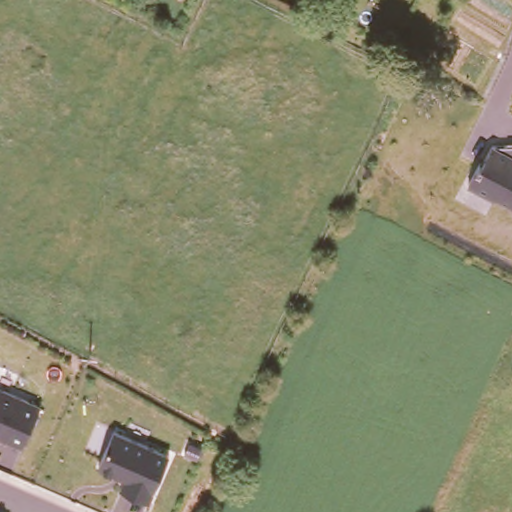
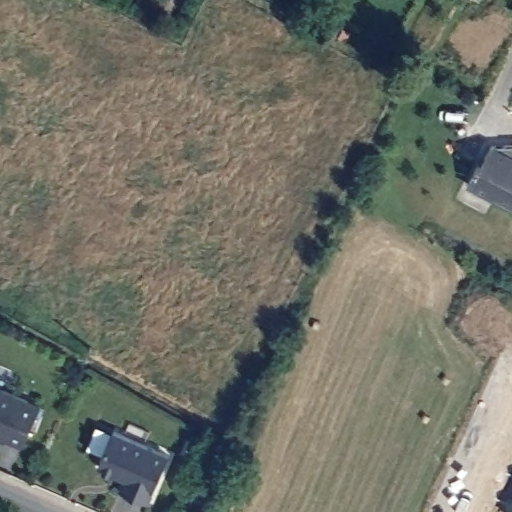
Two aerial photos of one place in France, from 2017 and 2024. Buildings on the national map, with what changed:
unchanged [(491,140),(512,139),(512,207),(466,184),(491,140)]
unchanged [(0,435),(0,385),(42,405),(22,446),(0,435)]
unchanged [(170,453),(150,502),(119,488),(123,478),(97,467),(114,427),(170,453)]

